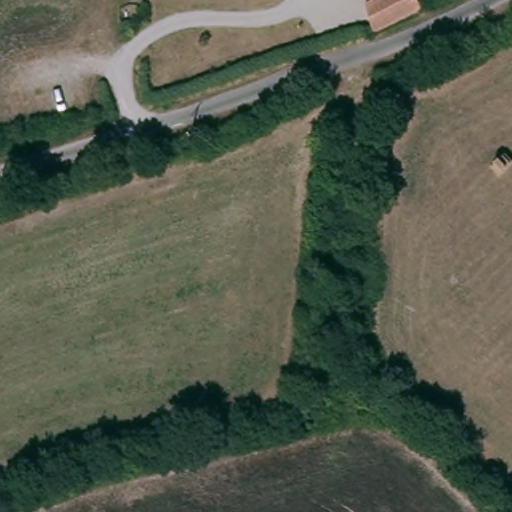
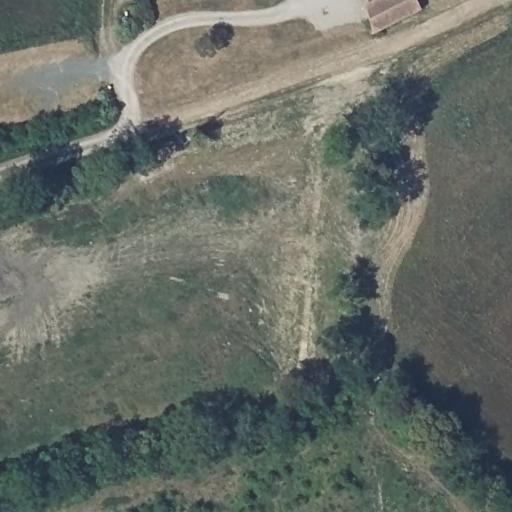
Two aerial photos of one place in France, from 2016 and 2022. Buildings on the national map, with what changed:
unchanged [(371,33),(363,8),(368,0),(415,0),(420,10),(371,33)]

